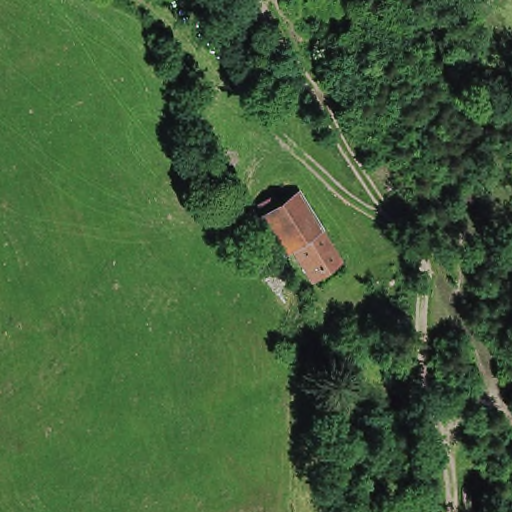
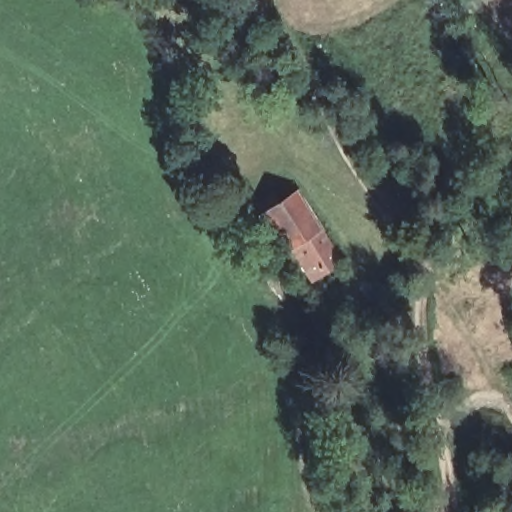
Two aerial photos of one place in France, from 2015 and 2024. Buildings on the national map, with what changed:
unchanged [(304,267),(295,252),(287,256),(263,219),(300,195),(323,234),(332,249),(342,264),(313,282),(304,267)]
unchanged [(265,205),(275,199),(280,205),(268,212),(265,205)]

